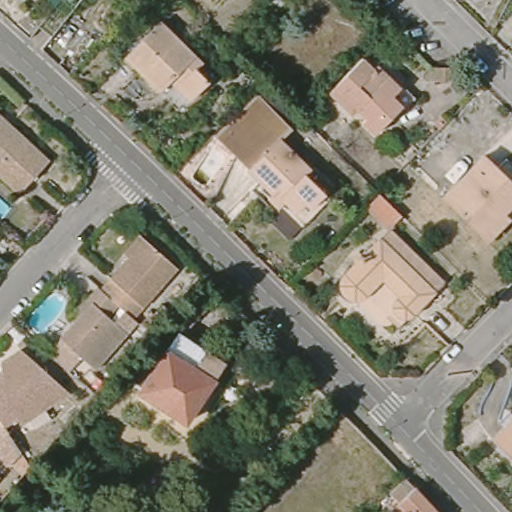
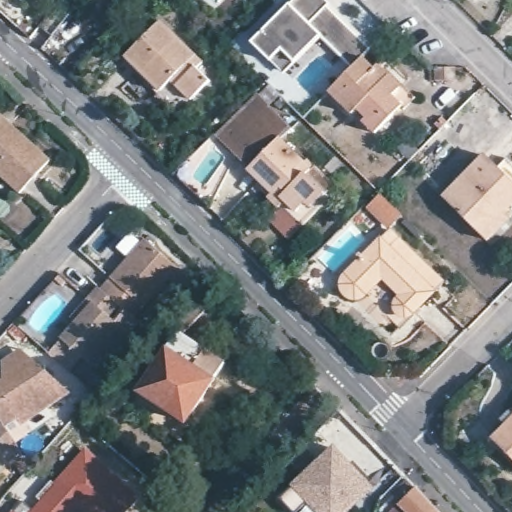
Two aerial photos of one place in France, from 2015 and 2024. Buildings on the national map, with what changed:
new [(295,0),(325,0),(330,5),(325,9),(334,18),(336,16),(370,50),(353,68),(320,37),(294,63),(280,50),(269,61),(251,44),(295,0)]
unchanged [(207,58),(200,65),(213,78),(197,95),(177,75),(167,85),(132,51),(165,17),(207,58)]
unchanged [(408,106),(380,134),(368,121),(371,117),(363,109),(357,114),(334,92),(368,57),(379,68),(382,65),(406,88),(416,98),(408,106)]
unchanged [(455,79),(435,79),(435,67),(455,67),(455,79)]
unchanged [(262,118),(232,148),(214,133),(262,91),(296,128),(280,136),(262,118)]
unchanged [(51,159),(20,193),(0,175),(0,114),(51,159)]
unchanged [(282,208),(288,202),(232,148),(262,118),(280,136),(325,180),(320,186),(339,205),(326,218),(321,213),(313,222),(301,211),(293,219),(282,208)]
unchanged [(444,191),(484,151),(512,178),(512,200),(503,209),(509,214),(489,235),(478,224),(444,191)]
unchanged [(407,204),(394,218),(372,197),(386,183),(407,204)]
unchanged [(441,280),(416,305),(414,306),(412,307),(409,307),(407,306),(405,305),(403,304),(402,302),(401,300),(400,298),(400,296),(400,294),(401,292),(402,290),(403,289),(406,286),(387,268),(371,284),(370,285),(369,286),(366,288),(363,288),(360,289),(357,288),(355,288),(352,286),(350,284),(348,282),(347,279),(346,276),(346,273),(347,270),(348,267),(350,265),(387,227),(441,280)]
unchanged [(119,305),(102,289),(128,258),(122,253),(139,233),(145,239),(178,268),(134,318),(119,305)]
unchanged [(97,370),(60,338),(75,321),(70,317),(87,297),(97,285),(102,289),(119,305),(109,317),(128,334),(97,370)]
unchanged [(139,391),(178,332),(170,326),(197,296),(208,307),(183,335),(226,363),(186,423),(139,391)]
unchanged [(17,419),(5,427),(0,419),(0,372),(3,370),(2,361),(22,348),(30,355),(54,377),(70,392),(63,397),(45,409),(29,420),(22,425),(17,419)]
unchanged [(501,421),(495,415),(504,405),(510,411),(512,410),(512,458),(488,434),(501,421)]
unchanged [(5,427),(22,451),(32,466),(24,474),(15,460),(10,464),(0,455),(0,419),(5,427)]
new [(37,498),(84,445),(143,495),(128,512),(77,512),(76,511),(75,512),(29,512),(40,500),(37,498)]
new [(346,464),(341,469),(365,492),(345,512),(291,512),(279,500),(331,448),(346,464)]
unchanged [(1,475),(0,476),(0,474),(1,475)]
unchanged [(391,494),(407,479),(438,512),(391,512),(400,503),(391,494)]
new [(13,512),(9,512),(10,510),(13,512)]

